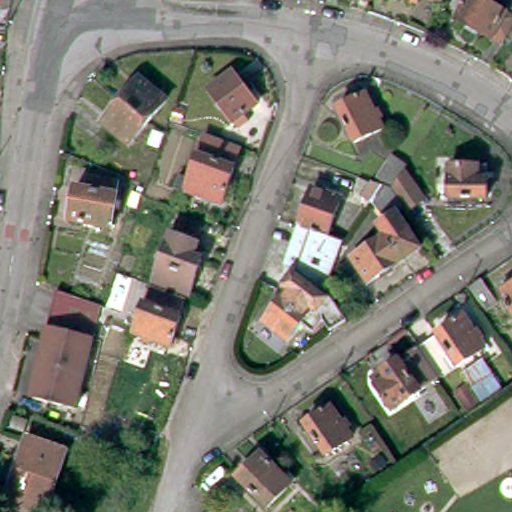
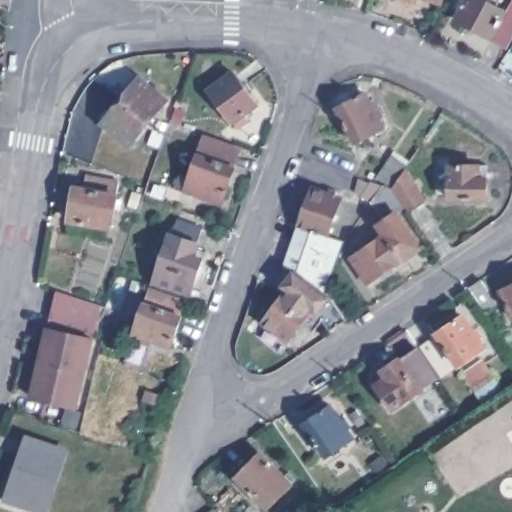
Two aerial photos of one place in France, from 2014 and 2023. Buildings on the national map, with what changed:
unchanged [(436,0),(441,0),(440,1),(436,0)]
unchanged [(491,36),(444,12),(452,0),(451,0),(486,0),(506,11),(491,36)]
unchanged [(258,105),(233,124),(209,90),(233,72),(258,105)]
unchanged [(136,77),(164,100),(144,125),(115,102),(136,77)]
unchanged [(383,129),(356,144),(339,110),(365,95),(383,129)]
unchanged [(144,125),(125,149),(98,125),(115,102),(144,125)]
unchanged [(239,154),(233,170),(236,171),(225,200),(223,200),(219,207),(186,195),(206,141),(239,154)]
unchanged [(374,283),(355,257),(388,236),(381,225),(390,219),(374,204),(366,197),(375,182),(387,186),(373,176),(389,156),(403,166),(401,169),(428,200),(409,214),(405,208),(398,215),(423,250),(374,283)]
unchanged [(488,167),(487,201),(448,200),(449,165),(488,167)]
unchanged [(114,181),(107,226),(64,219),(72,185),(83,188),(85,176),(114,181)]
unchanged [(323,190),(325,184),(333,186),(330,192),(336,195),(324,232),(311,227),(295,221),(309,185),(323,190)]
unchanged [(295,221),(311,227),(324,232),(340,237),(320,290),(309,280),(293,268),(279,262),(295,221)]
unchanged [(168,235),(173,222),(197,231),(193,244),(195,245),(193,252),(201,255),(198,261),(184,298),(148,285),(166,234),(168,235)]
unchanged [(266,334),(271,328),(259,317),(284,288),(279,285),(276,286),(272,282),(279,262),(293,268),(309,280),(320,290),(328,295),(332,302),(334,304),(343,317),(325,328),(321,318),(309,330),(297,320),(283,338),(279,335),(274,340),(266,334)]
unchanged [(486,277),(499,297),(489,305),(475,285),(486,277)]
unchanged [(512,285),(512,303),(506,287),(512,285)]
unchanged [(138,346),(141,339),(130,335),(147,290),(181,302),(175,317),(178,318),(168,349),(149,342),(147,349),(138,346)]
unchanged [(98,305),(87,342),(67,412),(24,400),(36,360),(33,359),(40,336),(65,344),(68,337),(42,330),(53,292),(98,305)]
unchanged [(464,312),(485,345),(439,376),(417,343),(464,312)]
unchanged [(438,376),(392,406),(376,380),(380,376),(376,370),(381,367),(416,344),(438,376)]
unchanged [(326,458),(304,426),(332,407),(343,425),(349,420),(353,426),(347,430),(353,440),(326,458)]
unchanged [(64,452),(44,512),(8,500),(28,441),(64,452)]
unchanged [(291,480),(269,505),(239,475),(261,451),(291,480)]

